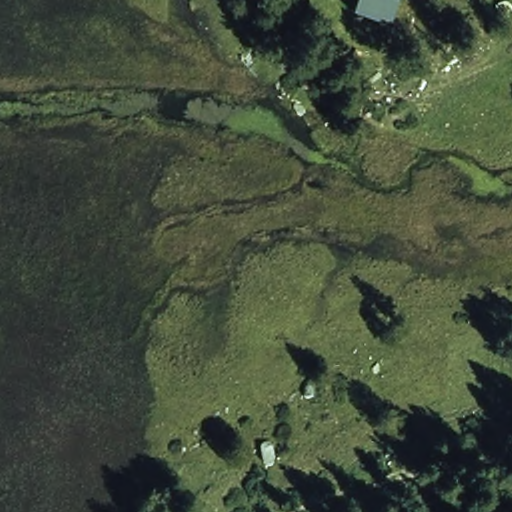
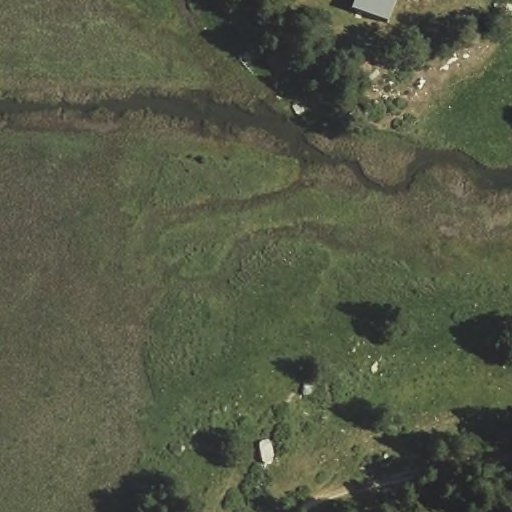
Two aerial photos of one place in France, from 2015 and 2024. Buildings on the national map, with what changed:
unchanged [(390,21),(350,12),(355,0),(399,0),(390,21)]

